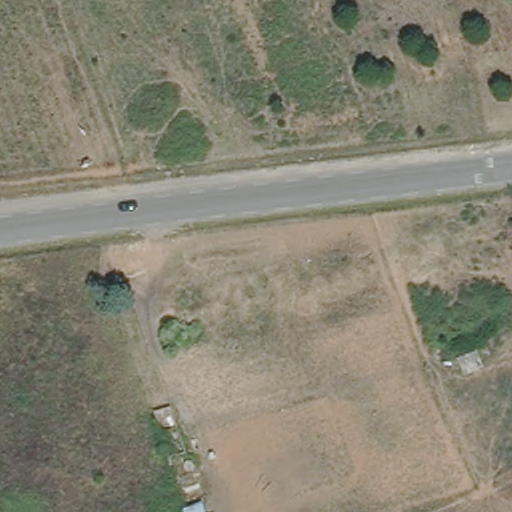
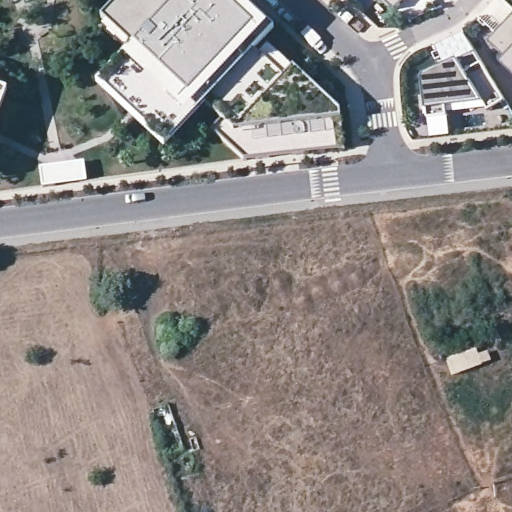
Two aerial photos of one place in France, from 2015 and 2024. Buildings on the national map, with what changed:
new [(226,116),(210,101),(165,149),(98,86),(125,61),(137,49),(104,17),(121,0),(239,0),(274,34),(254,54),(285,80),(295,70),(341,112),(342,120),(345,149),(245,160),(214,130),(226,116)]
new [(396,10),(386,0),(406,0),(396,10)]
new [(507,58),(496,47),(489,41),(495,34),(512,16),(512,71),(503,63),(507,58)]
new [(427,78),(428,76),(477,52),(508,102),(491,112),(485,103),(449,107),(450,117),(431,120),(426,82),(427,78)]
new [(7,95),(0,117),(0,93),(7,95)]
unchanged [(184,450),(169,451),(154,410),(168,405),(184,450)]
unchanged [(202,512),(203,511),(204,512),(202,512)]

